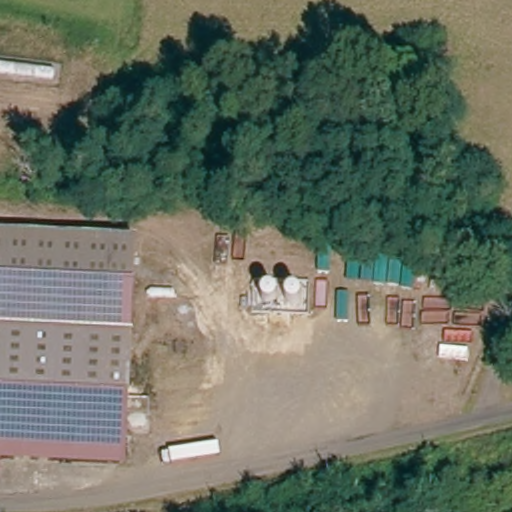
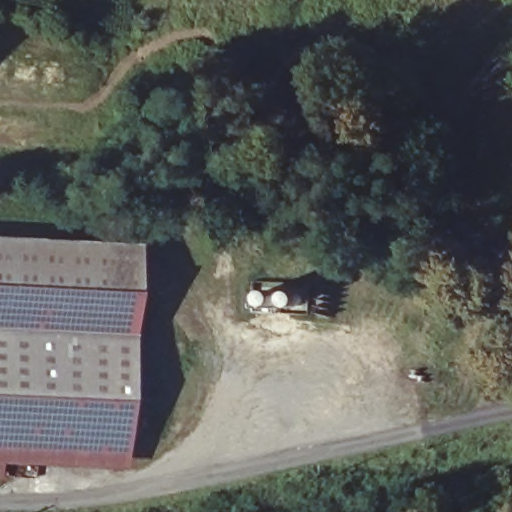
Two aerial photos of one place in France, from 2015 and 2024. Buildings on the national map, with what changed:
unchanged [(131,329),(0,322),(0,234),(134,240),(131,329)]
unchanged [(127,458),(0,451),(0,322),(131,329),(127,458)]

